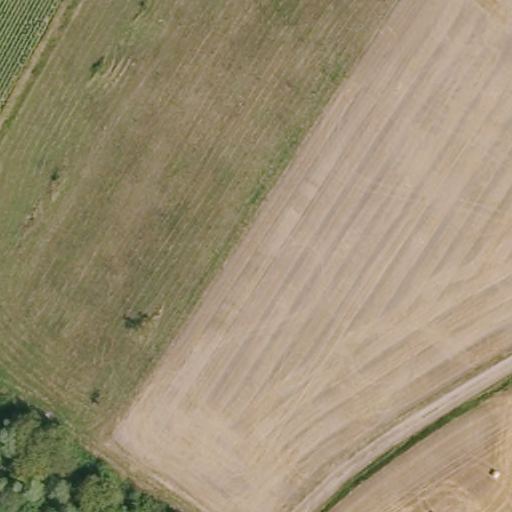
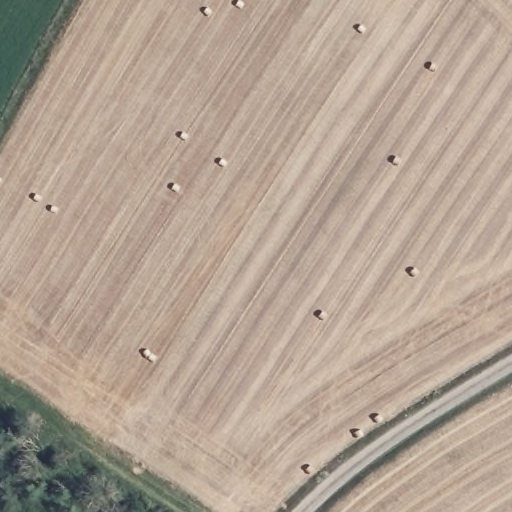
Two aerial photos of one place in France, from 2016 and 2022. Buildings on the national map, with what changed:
[]

